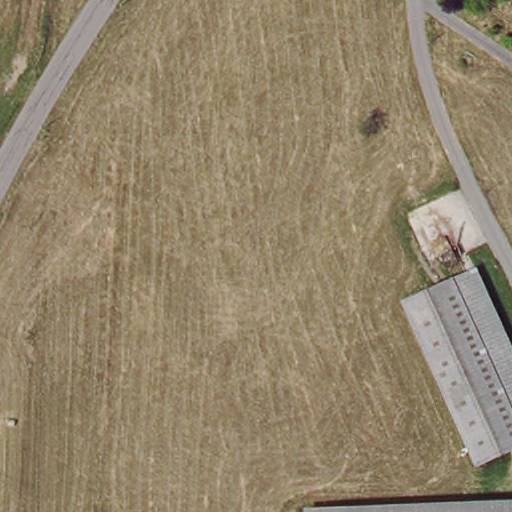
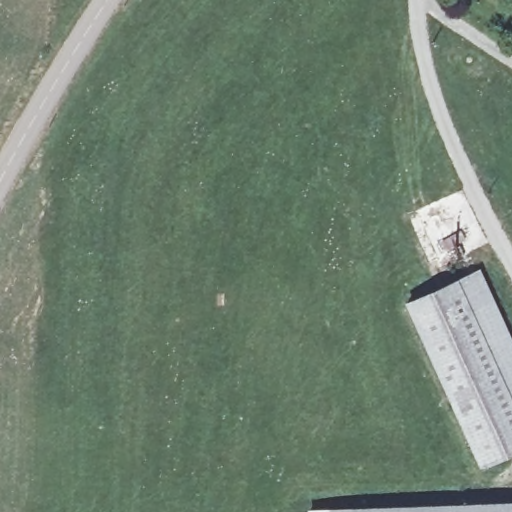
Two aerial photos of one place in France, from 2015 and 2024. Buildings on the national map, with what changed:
unchanged [(512,339),(512,451),(482,464),(410,302),(448,287),(482,271),(512,339)]
unchanged [(512,501),(512,512),(310,512),(309,508),(512,501)]

